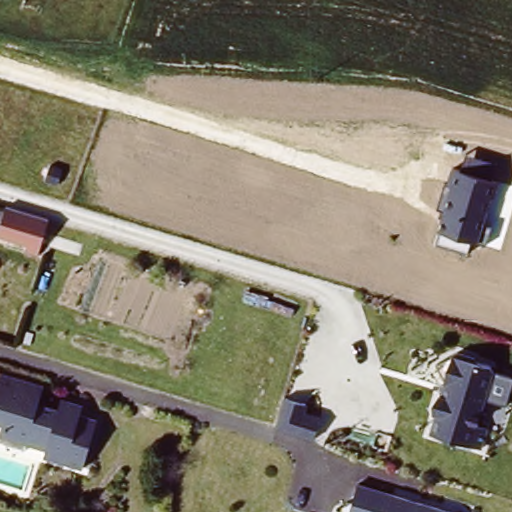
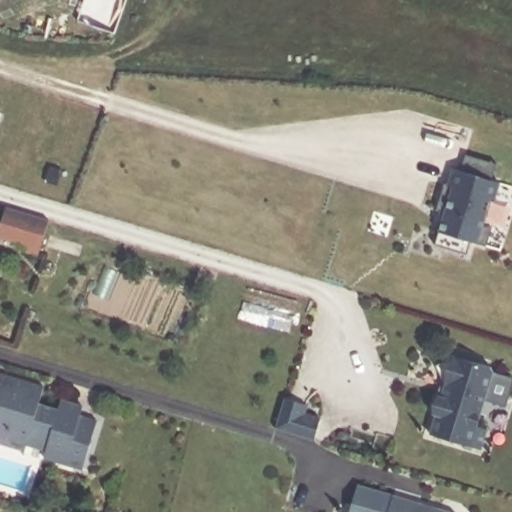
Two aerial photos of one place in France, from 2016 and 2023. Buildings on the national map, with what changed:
unchanged [(442,218),(438,217),(440,209),(435,207),(442,180),(447,181),(450,167),(458,169),(463,154),(497,164),(493,179),(497,180),(481,243),(470,241),(467,252),(435,244),(442,218)]
unchanged [(49,218),(37,255),(0,243),(0,221),(5,206),(49,218)]
unchanged [(453,351),(495,364),(477,424),(487,429),(480,450),(430,434),(453,351)]
unchanged [(91,462),(72,456),(75,449),(54,442),(52,450),(33,444),(35,436),(0,426),(0,368),(5,370),(7,364),(52,379),(47,396),(66,402),(69,392),(91,399),(88,408),(105,414),(91,462)]
unchanged [(283,395),(309,402),(307,410),(321,414),(314,439),(275,428),(283,395)]
unchanged [(357,484),(452,512),(350,512),(357,484)]

